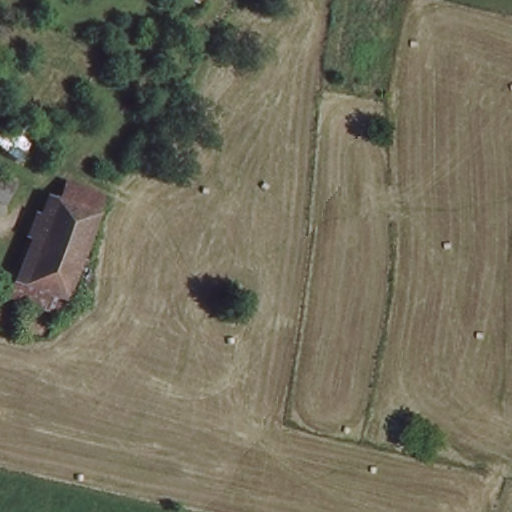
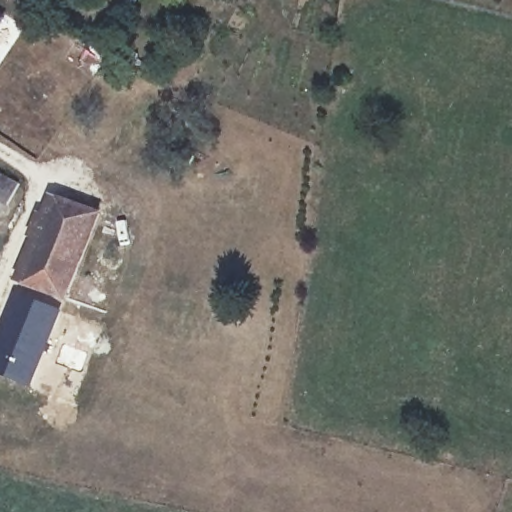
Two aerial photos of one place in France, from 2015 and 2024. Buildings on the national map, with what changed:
new [(0,22),(0,13),(4,15),(0,22)]
unchanged [(0,203),(0,175),(24,181),(18,206),(0,203)]
unchanged [(95,211),(81,247),(61,300),(21,287),(55,199),(95,211)]
new [(60,308),(31,386),(0,375),(0,318),(11,288),(60,308)]

